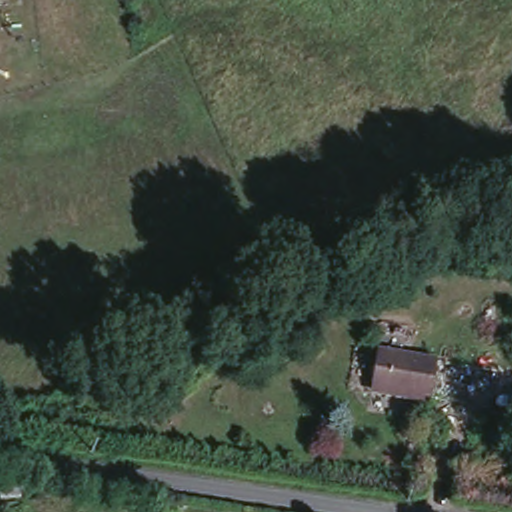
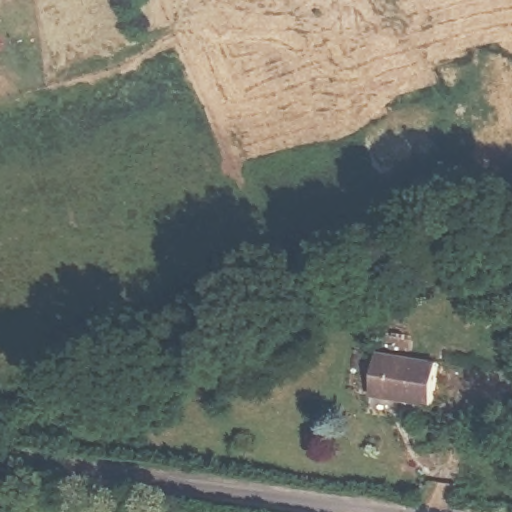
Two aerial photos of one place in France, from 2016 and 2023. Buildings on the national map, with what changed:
unchanged [(429,407),(371,400),(378,352),(439,362),(429,407)]

